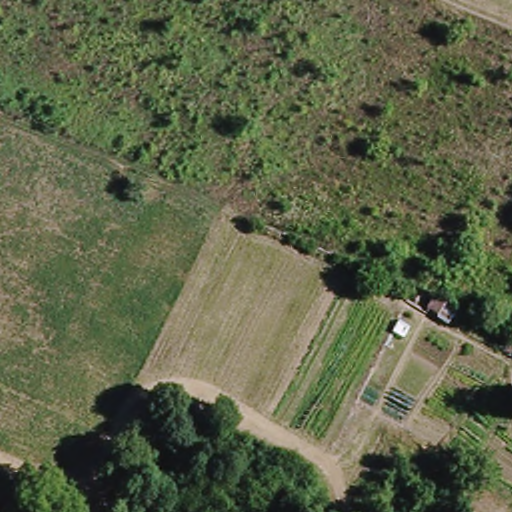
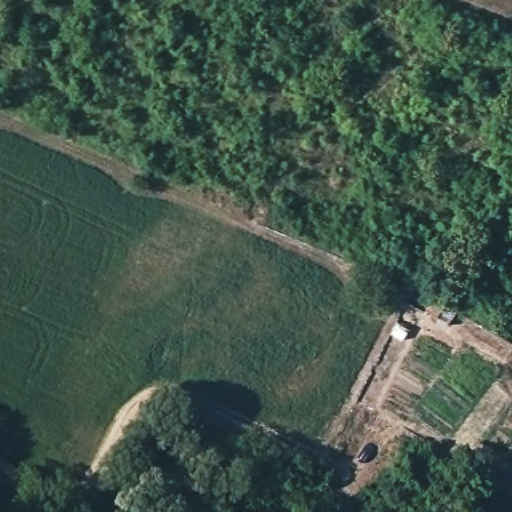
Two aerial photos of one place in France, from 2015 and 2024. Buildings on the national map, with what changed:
unchanged [(438,318),(428,312),(435,299),(446,306),(438,318)]
unchanged [(473,496),(462,489),(468,478),(479,486),(473,496)]

